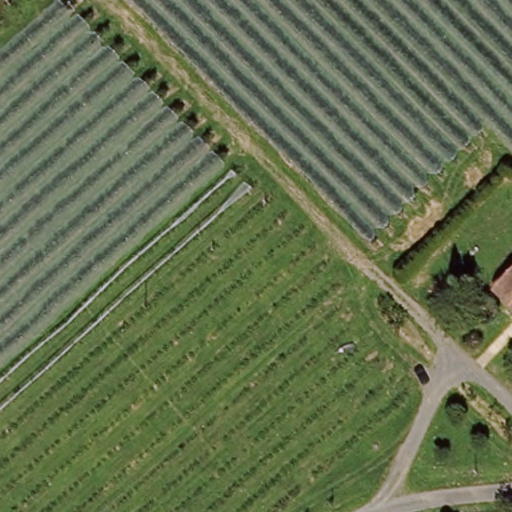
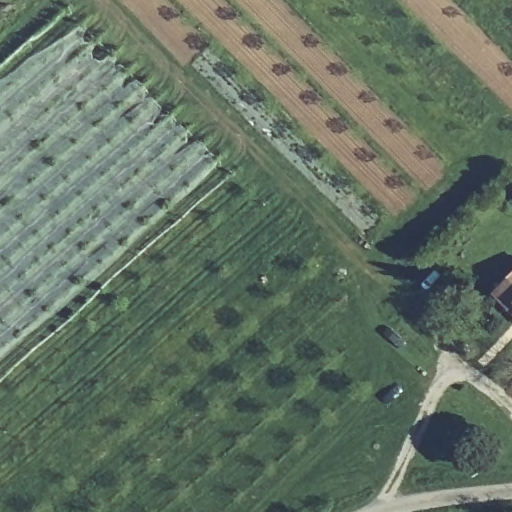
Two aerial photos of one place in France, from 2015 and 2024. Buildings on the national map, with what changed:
unchanged [(492,291),(512,270),(512,311),(506,305),(492,291)]

